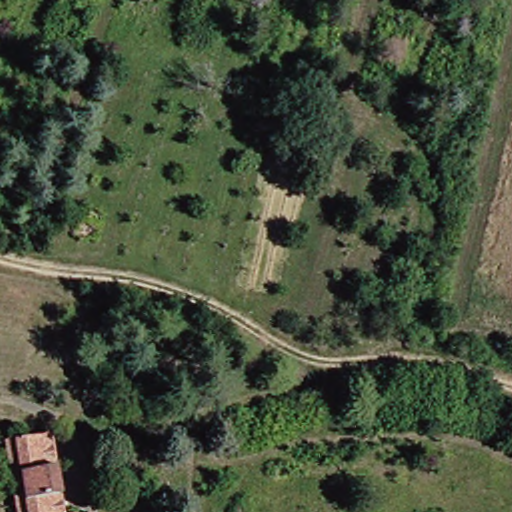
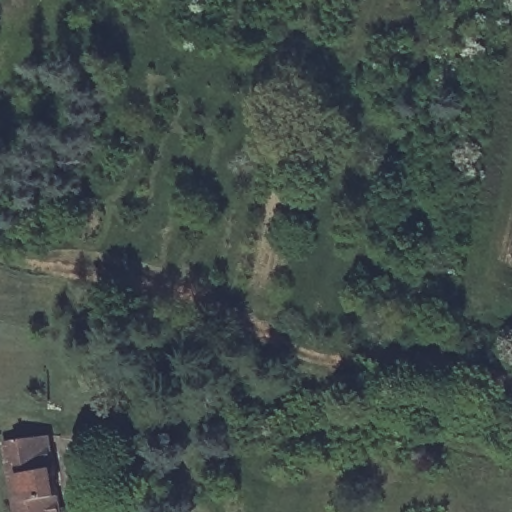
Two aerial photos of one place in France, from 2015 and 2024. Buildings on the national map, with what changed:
unchanged [(21,473),(14,474),(9,437),(21,436),(35,434),(34,430),(56,427),(67,512),(26,512),(25,505),(21,473)]

